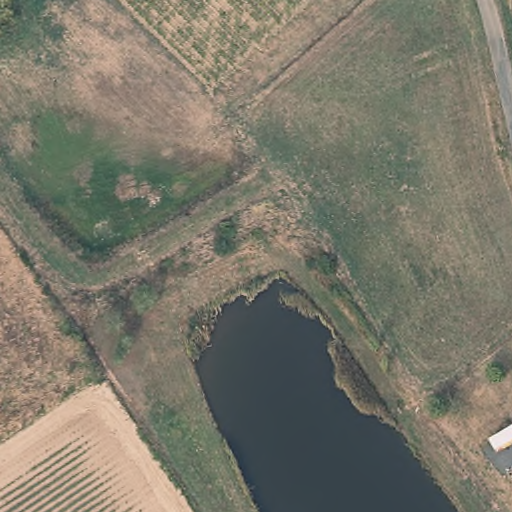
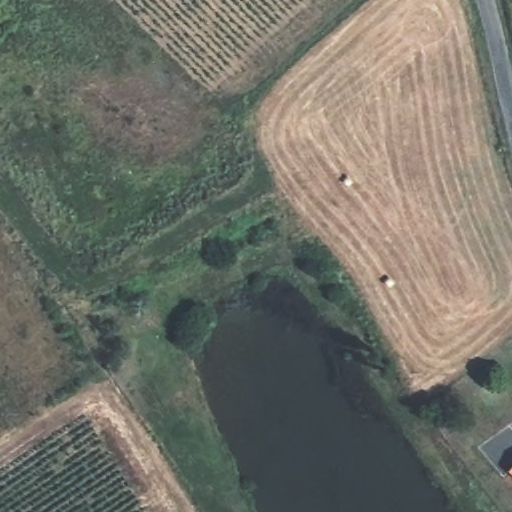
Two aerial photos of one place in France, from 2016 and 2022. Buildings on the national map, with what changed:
[]

